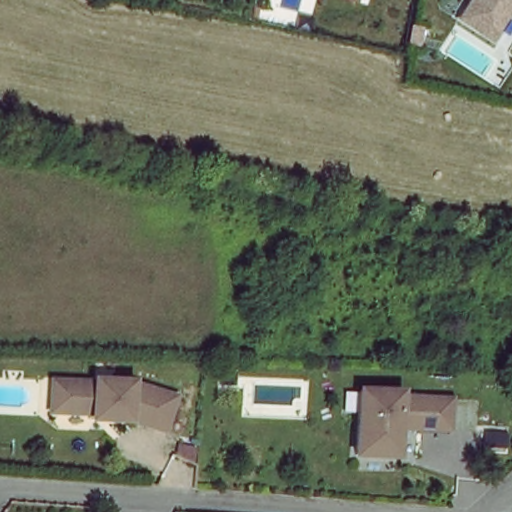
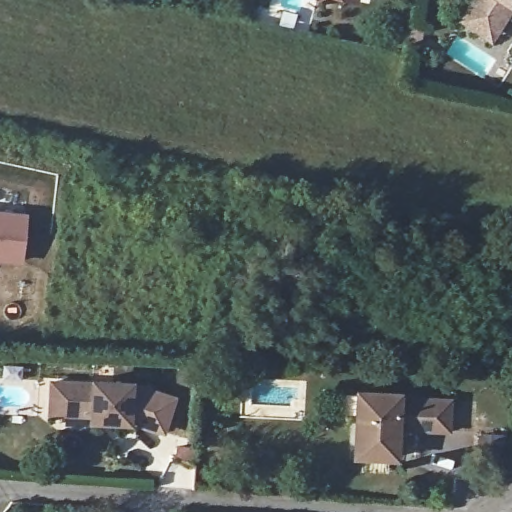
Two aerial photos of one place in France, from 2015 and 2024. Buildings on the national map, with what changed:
unchanged [(347,0),(359,0),(359,3),(347,0)]
unchanged [(472,0),(512,0),(512,6),(492,37),(489,42),(458,21),(472,0)]
new [(27,213),(22,263),(0,261),(0,210),(27,213)]
unchanged [(97,418),(63,417),(56,417),(57,384),(64,384),(99,385),(101,383),(136,384),(137,387),(178,397),(169,432),(137,423),(113,423),(98,424),(97,418)]
unchanged [(395,401),(447,403),(445,433),(395,432),(394,461),(353,460),(354,396),(395,397),(395,401)]

